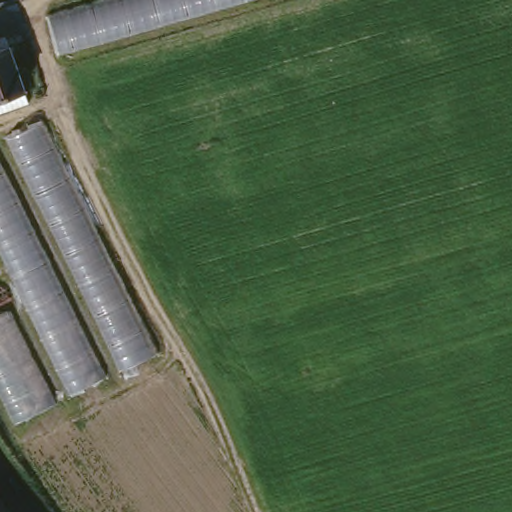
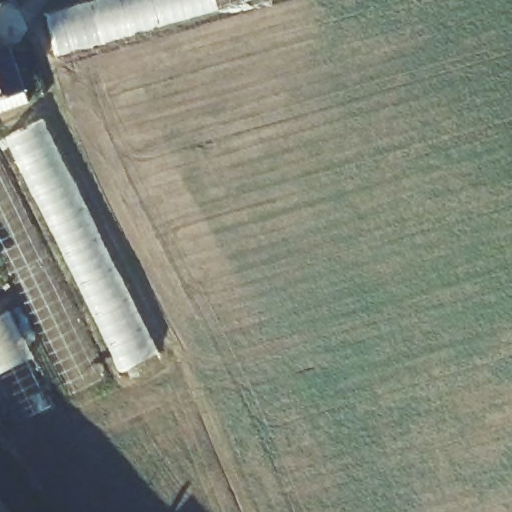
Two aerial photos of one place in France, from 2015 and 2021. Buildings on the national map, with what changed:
unchanged [(65,47),(57,12),(98,0),(219,0),(65,47)]
unchanged [(4,106),(0,97),(0,42),(18,36),(35,82),(39,94),(4,106)]
unchanged [(161,348),(131,364),(22,137),(47,125),(161,348)]
unchanged [(108,376),(79,389),(0,229),(0,152),(108,376)]
unchanged [(58,400),(22,417),(0,366),(0,320),(15,313),(58,400)]
unchanged [(21,512),(0,512),(0,484),(21,512)]

